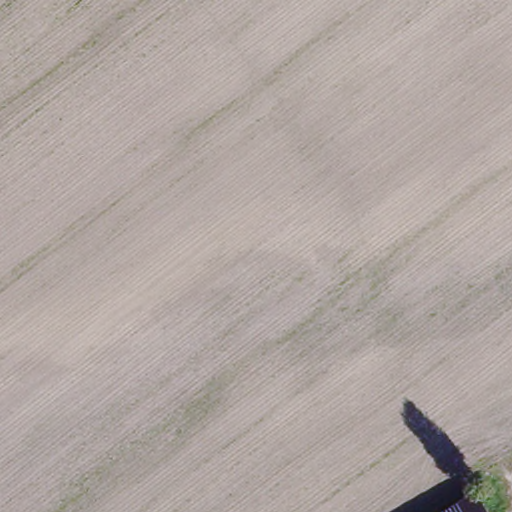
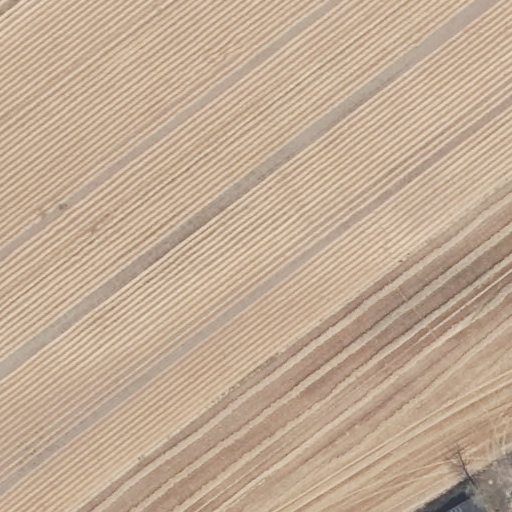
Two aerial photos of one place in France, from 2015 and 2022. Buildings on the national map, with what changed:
unchanged [(485,512),(434,512),(474,489),(485,512)]

